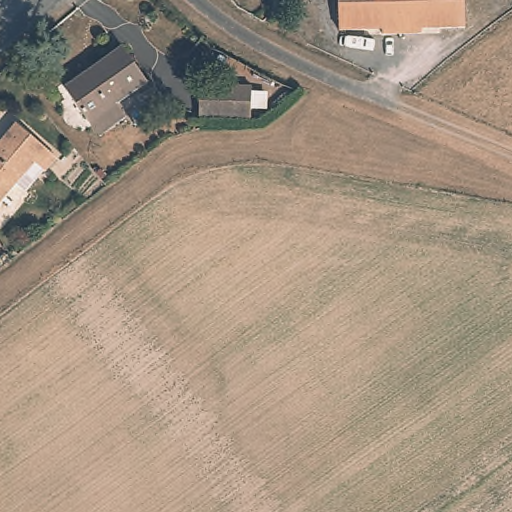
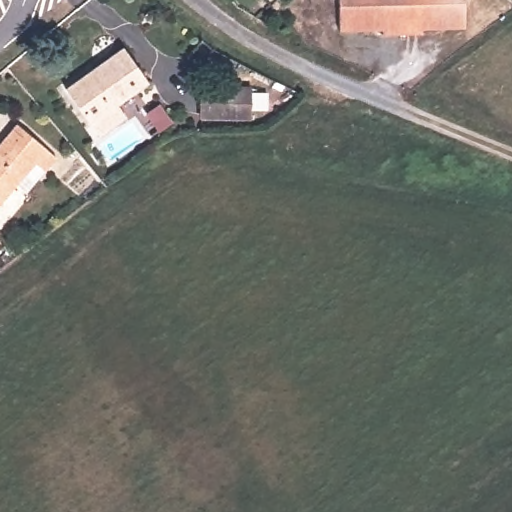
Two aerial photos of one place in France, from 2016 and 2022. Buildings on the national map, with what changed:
unchanged [(465,35),(442,35),(441,29),(425,28),(425,40),(381,41),(382,28),(365,29),(365,37),(342,36),(342,0),(466,0),(465,35)]
unchanged [(122,41),(147,75),(116,98),(124,108),(99,126),(65,82),(122,41)]
unchanged [(254,80),(252,107),(204,107),(205,77),(249,78),(254,80)]
unchanged [(21,129),(60,163),(47,177),(37,165),(0,209),(0,152),(21,129)]

